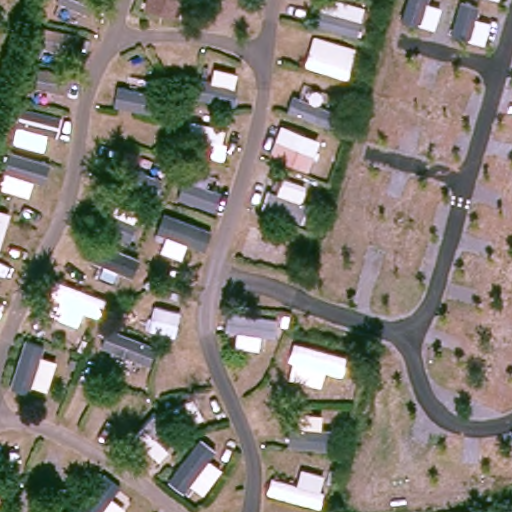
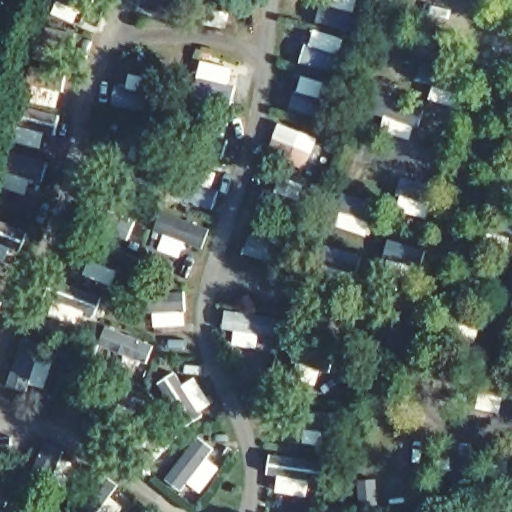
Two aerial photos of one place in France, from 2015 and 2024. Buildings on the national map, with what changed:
unchanged [(171,11),(140,0),(141,0),(175,0),(171,11)]

